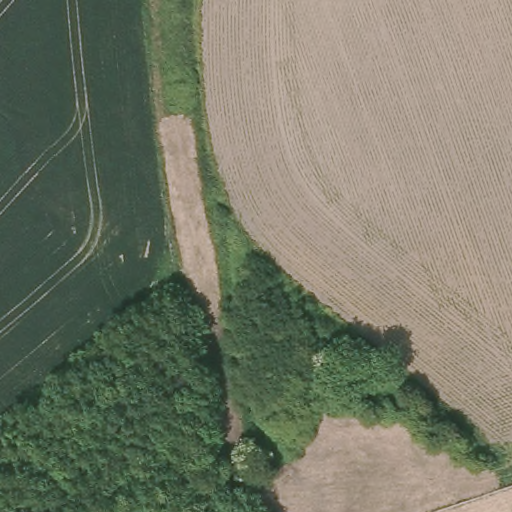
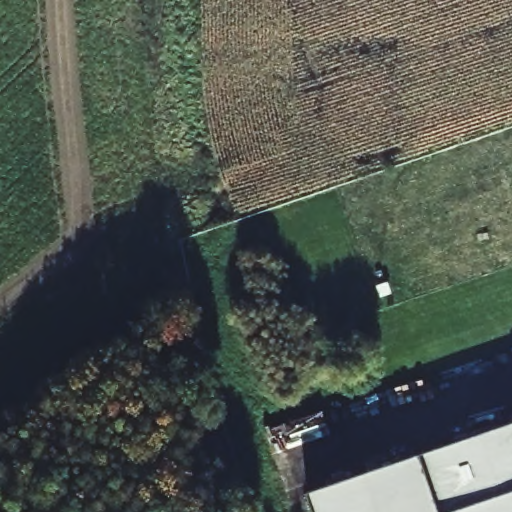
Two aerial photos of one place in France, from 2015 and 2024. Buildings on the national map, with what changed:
new [(512,425),(512,512),(314,512),(308,494),(512,425)]

